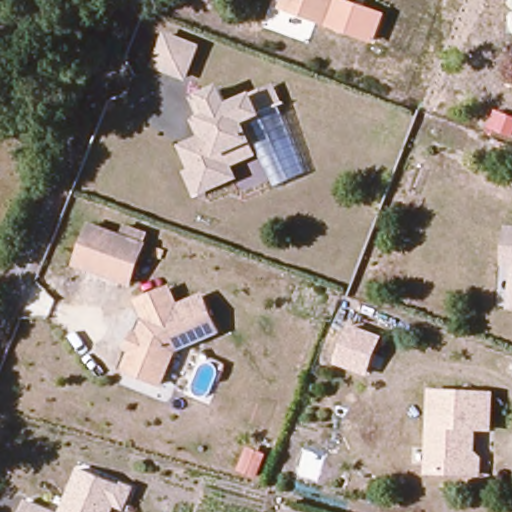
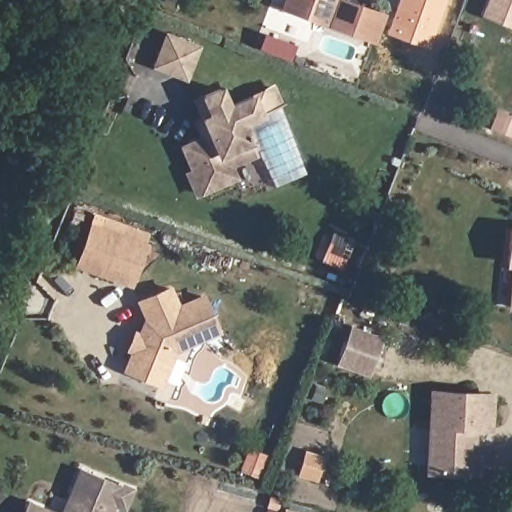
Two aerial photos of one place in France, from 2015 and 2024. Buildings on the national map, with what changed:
unchanged [(323,24),(280,7),(282,0),(332,0),(332,1),(323,24)]
unchanged [(332,0),(349,0),(385,13),(373,42),(323,24),(332,1),(332,0)]
new [(445,0),(428,49),(387,34),(399,0),(445,0)]
new [(512,0),(512,29),(480,16),(486,0),(512,0)]
unchanged [(199,51),(187,81),(157,68),(170,39),(199,51)]
unchanged [(196,165),(185,140),(205,132),(199,115),(206,112),(200,96),(224,86),(232,104),(277,85),(284,102),(281,104),(247,119),(260,150),(232,162),(237,174),(215,183),(200,190),(190,167),(196,165)]
unchanged [(145,247),(130,285),(77,264),(93,226),(145,247)]
unchanged [(511,229),(512,229),(512,263),(507,262),(511,229)]
unchanged [(133,332),(137,334),(145,317),(137,300),(166,287),(176,306),(200,294),(216,328),(173,346),(159,382),(124,367),(132,348),(127,346),(133,332)]
unchanged [(512,287),(512,306),(510,306),(512,287)]
unchanged [(353,326),(383,335),(370,373),(341,363),(353,326)]
unchanged [(487,428),(467,427),(467,434),(472,435),(472,450),(467,452),(466,475),(427,473),(429,392),(489,394),(487,428)]
unchanged [(125,491),(118,508),(110,504),(106,512),(60,512),(77,471),(125,491)]
unchanged [(22,505),(38,512),(18,512),(22,505)]
unchanged [(305,512),(282,512),(282,508),(305,512)]

